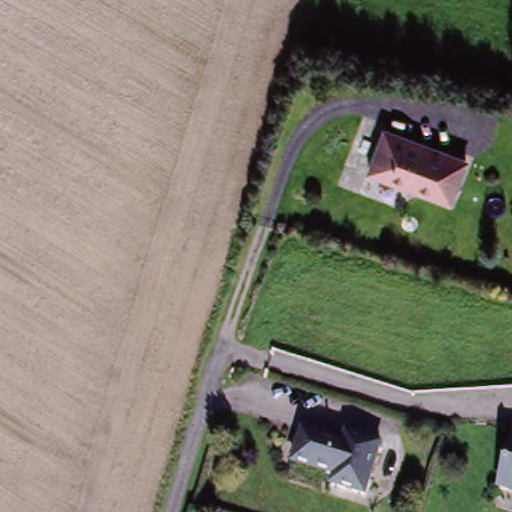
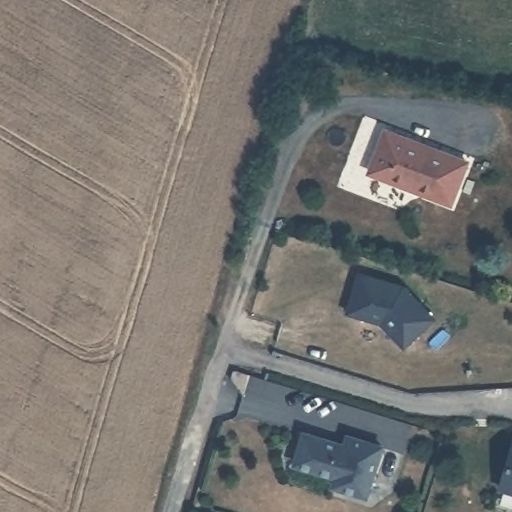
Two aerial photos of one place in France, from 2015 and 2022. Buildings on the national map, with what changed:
unchanged [(468,160),(451,203),(367,171),(384,128),(468,160)]
new [(362,273),(405,287),(435,319),(405,346),(383,322),(350,311),(362,273)]
unchanged [(382,444),(366,496),(331,485),(334,476),(293,463),(303,430),(344,443),(347,434),(382,444)]
unchanged [(512,443),(512,492),(499,487),(512,443)]

